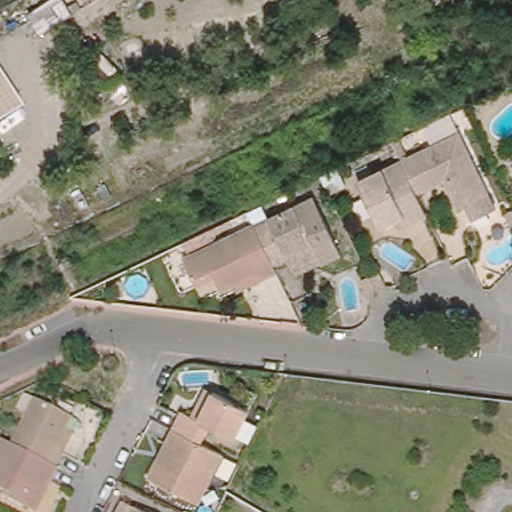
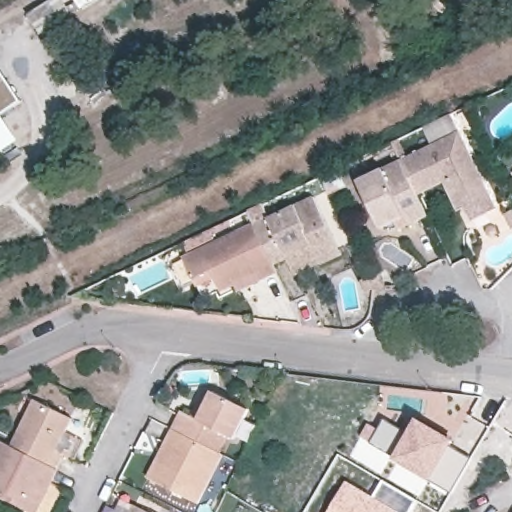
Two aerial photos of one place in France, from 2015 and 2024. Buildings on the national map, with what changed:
unchanged [(43,0),(71,0),(80,15),(42,36),(26,8),(43,0)]
unchanged [(24,99),(0,114),(0,63),(24,99)]
unchanged [(444,175),(417,188),(401,155),(432,140),(430,135),(425,123),(451,110),(457,122),(497,203),(473,215),(465,200),(458,204),(444,175)]
unchanged [(396,214),(381,221),(359,175),(401,155),(417,188),(428,210),(410,219),(400,223),(396,214)]
unchanged [(287,252),(273,258),(255,220),(313,192),(341,248),(321,257),(295,270),(287,252)]
unchanged [(235,278),(222,284),(217,272),(198,281),(184,253),(255,220),(273,258),(277,268),(260,275),(238,285),(235,278)]
unchanged [(360,280),(370,276),(376,273),(383,286),(380,289),(375,289),(366,294),(360,280)]
unchanged [(187,410),(196,415),(211,386),(218,390),(252,407),(237,435),(212,423),(202,442),(177,429),(187,410)]
unchanged [(23,446),(45,401),(83,419),(77,432),(83,435),(66,468),(23,446)]
new [(455,439),(452,445),(430,482),(391,458),(358,437),(366,422),(377,428),(385,418),(407,431),(416,416),(455,439)]
unchanged [(155,476),(162,459),(170,443),(177,429),(202,442),(228,455),(204,501),(155,476)]
unchanged [(0,484),(0,456),(9,439),(23,446),(66,468),(46,512),(43,512),(11,496),(1,491),(3,486),(0,484)]
new [(375,495),(399,512),(326,512),(346,480),(375,495)]
unchanged [(162,512),(129,512),(135,499),(162,512)]

